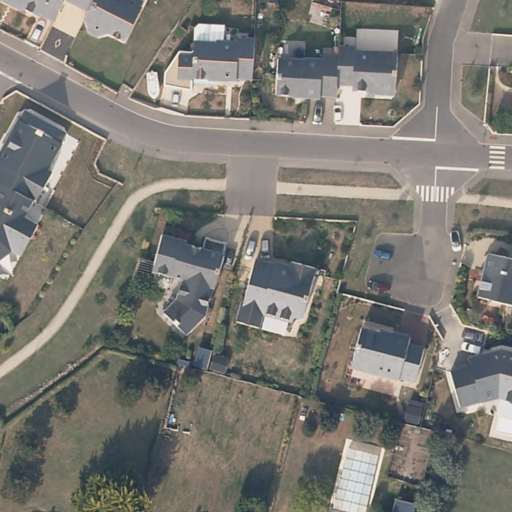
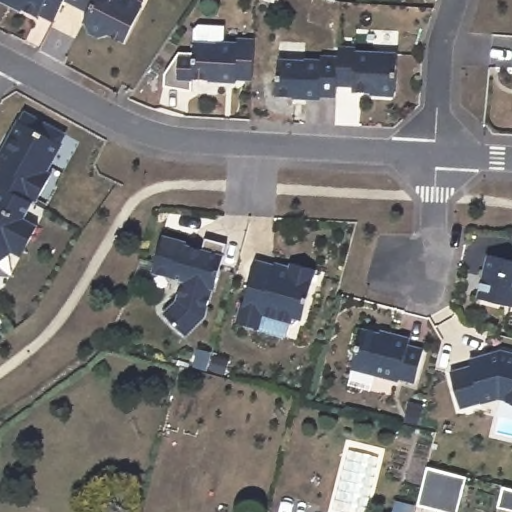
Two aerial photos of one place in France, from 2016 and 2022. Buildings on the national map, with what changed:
unchanged [(65,2),(55,24),(40,16),(40,19),(3,0),(67,0),(65,2)]
unchanged [(65,2),(67,0),(125,0),(138,0),(145,3),(142,9),(143,9),(126,44),(109,35),(109,36),(100,39),(90,34),(86,25),(87,25),(85,24),(90,14),(81,10),(65,2)]
unchanged [(259,79),(244,77),(243,80),(225,79),(225,77),(200,76),(199,90),(171,84),(171,71),(186,50),(201,50),(201,40),(224,41),(224,40),(245,41),(245,37),(261,38),(259,79)]
unchanged [(368,91),(350,90),(350,85),(335,84),(336,55),(336,45),(354,46),(353,50),(395,52),(393,90),(392,90),(388,95),(381,94),(368,94),(368,91)]
unchanged [(335,84),(334,95),(318,95),(318,98),(300,96),(300,95),(274,94),(276,58),(302,60),(302,58),(319,59),(319,55),(336,55),(335,84)]
unchanged [(66,140),(68,149),(65,153),(66,154),(52,179),(54,186),(40,212),(32,208),(17,200),(0,190),(0,181),(5,173),(0,170),(24,129),(25,130),(28,125),(37,120),(66,140)]
unchanged [(17,200),(32,208),(24,224),(37,231),(29,245),(26,244),(18,258),(10,253),(0,261),(0,190),(17,200)]
unchanged [(222,256),(214,290),(211,289),(204,317),(185,336),(162,314),(175,301),(181,281),(151,273),(161,236),(185,244),(185,246),(200,250),(204,239),(225,245),(222,256)]
unchanged [(512,262),(512,308),(477,300),(489,256),(512,262)]
unchanged [(241,303),(243,304),(255,261),(288,270),(290,264),(315,270),(301,320),(292,317),(290,323),(261,315),(257,329),(235,323),(241,303)]
unchanged [(390,337),(390,335),(408,340),(406,346),(422,351),(412,385),(397,380),(396,383),(349,370),(360,330),(390,337)]
unchanged [(480,400),(459,405),(449,370),(470,363),(468,357),(493,350),(500,348),(512,352),(512,400),(497,395),(480,400)]
new [(467,475),(457,512),(449,512),(417,504),(428,465),(467,475)]
new [(512,491),(512,512),(497,508),(502,488),(512,491)]

